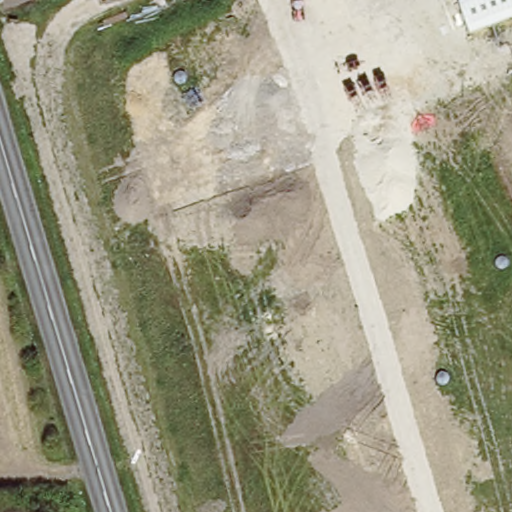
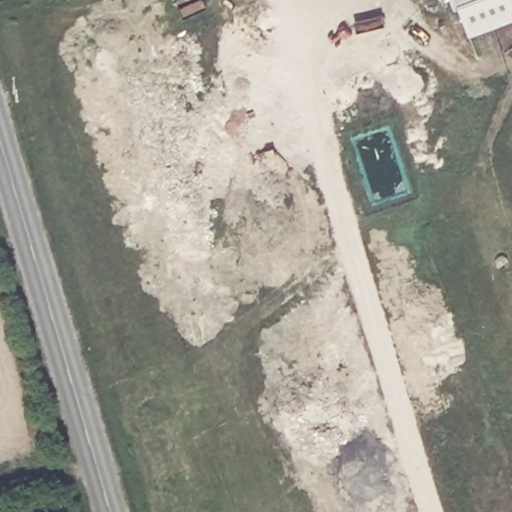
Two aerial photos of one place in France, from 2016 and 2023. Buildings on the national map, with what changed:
unchanged [(468,36),(455,0),(512,0),(512,19),(468,36)]

